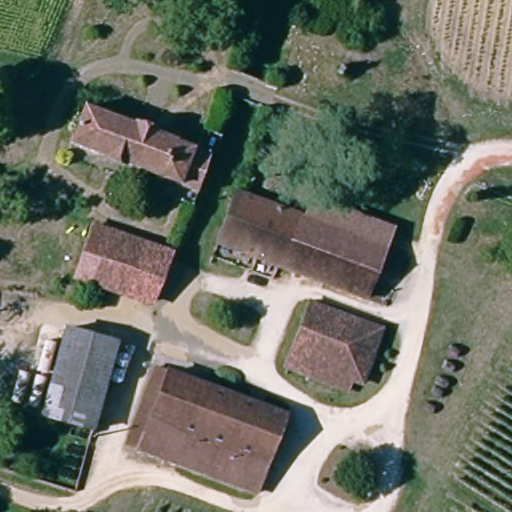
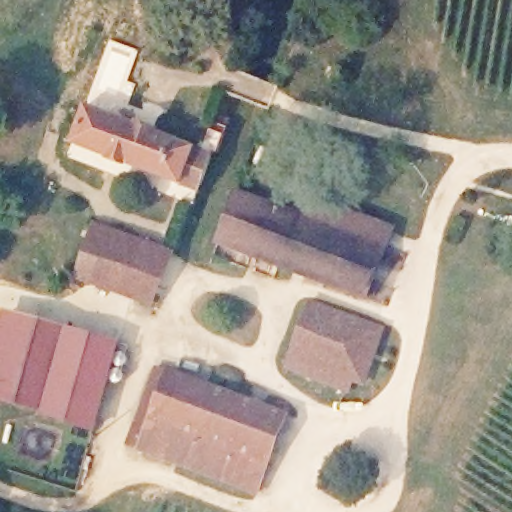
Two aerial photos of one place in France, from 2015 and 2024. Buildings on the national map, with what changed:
unchanged [(197,189),(77,142),(90,106),(209,156),(197,189)]
unchanged [(275,261),(219,239),(239,186),(296,209),(275,261)]
unchanged [(358,293),(280,262),(275,261),(296,209),(342,227),(349,211),(383,224),(378,241),(396,248),(390,266),(372,258),(365,278),(380,284),(374,300),(358,293)]
unchanged [(97,217),(174,246),(151,303),(78,278),(97,217)]
unchanged [(386,330),(363,382),(332,369),(327,383),(310,377),(278,362),(305,296),(365,321),(386,330)]
new [(0,324),(4,310),(65,327),(45,412),(0,400),(0,324)]
unchanged [(44,417),(65,327),(115,340),(94,428),(44,417)]
unchanged [(290,416),(268,465),(262,482),(258,492),(138,450),(127,445),(124,443),(130,432),(160,365),(290,416)]

